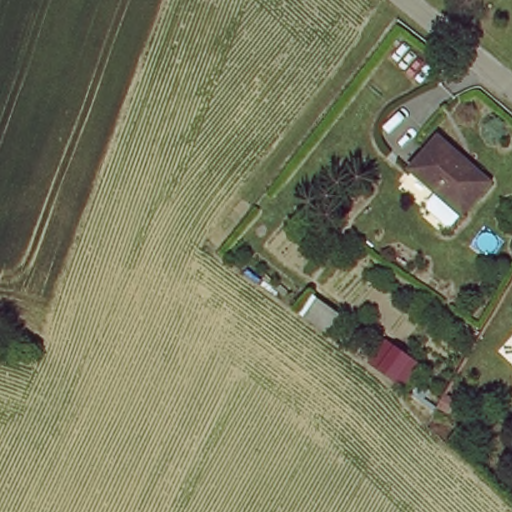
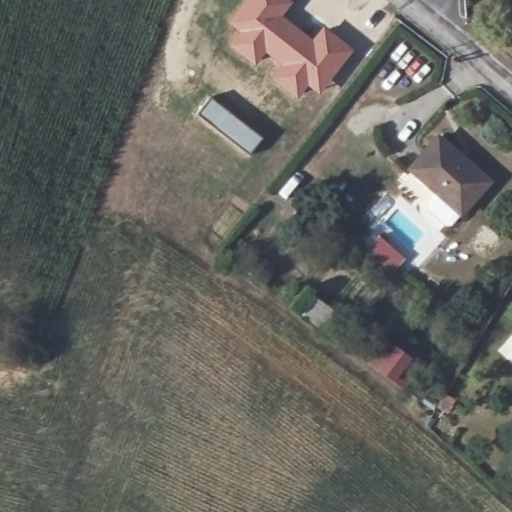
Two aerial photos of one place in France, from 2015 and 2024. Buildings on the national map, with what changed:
new [(227,22),(244,0),(292,0),(282,15),(312,39),(322,25),(354,50),(319,95),(308,87),(297,100),(269,77),(279,65),(266,54),(255,67),(227,45),(237,30),(227,22)]
new [(209,97),(262,137),(249,154),(197,114),(209,97)]
unchanged [(462,211),(441,191),(438,195),(410,169),(439,136),(489,181),(462,211)]
unchanged [(338,307),(327,322),(306,307),(317,291),(338,307)]
new [(404,390),(367,363),(385,338),(422,365),(404,390)]

